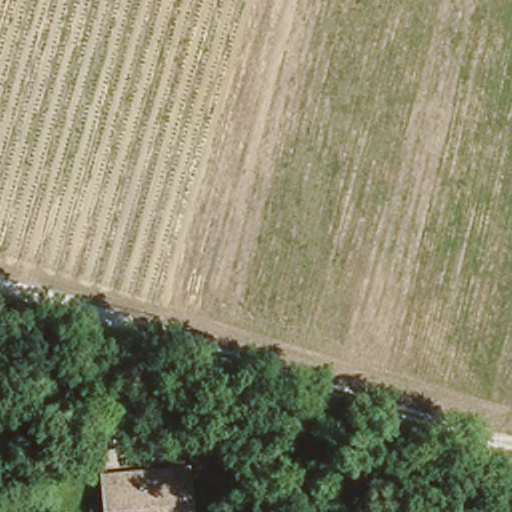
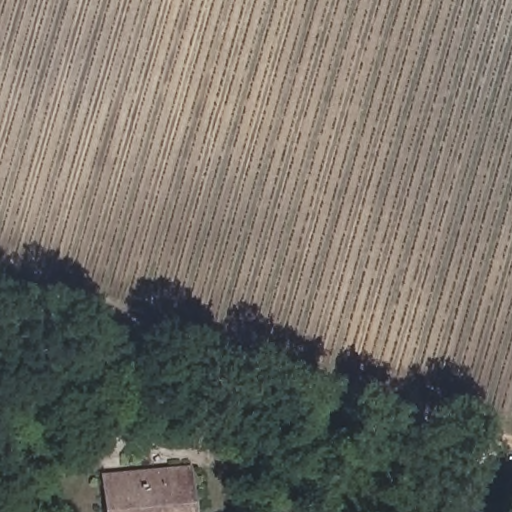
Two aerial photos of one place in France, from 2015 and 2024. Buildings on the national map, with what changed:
unchanged [(98,479),(97,470),(131,467),(149,466),(186,462),(187,471),(191,512),(102,512),(98,479)]

